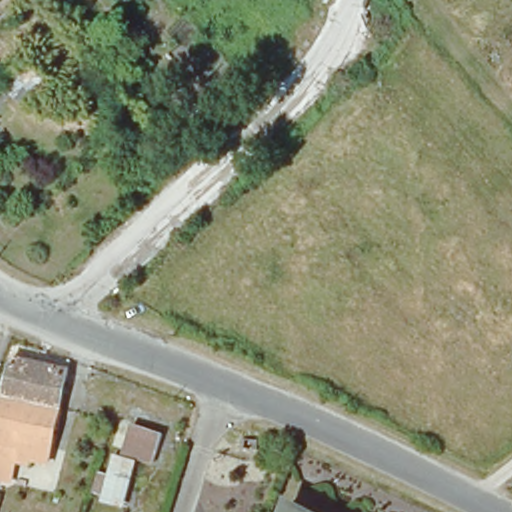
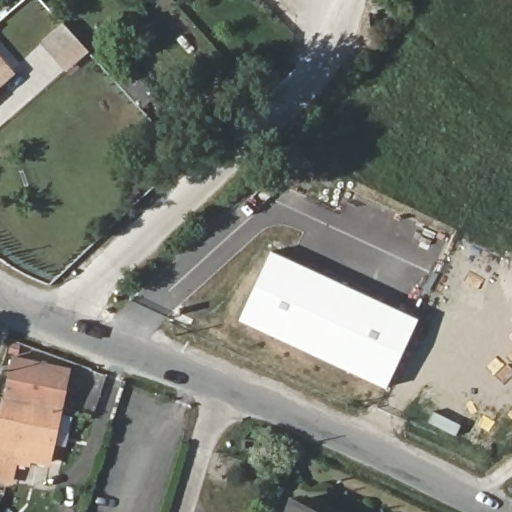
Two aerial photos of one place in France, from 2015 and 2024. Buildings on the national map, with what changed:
new [(66,72),(40,44),(63,23),(89,51),(66,72)]
new [(0,81),(0,55),(13,70),(0,81)]
new [(238,319),(271,250),(418,319),(385,388),(238,319)]
unchanged [(16,464),(7,496),(0,493),(0,414),(17,353),(76,369),(47,473),(16,464)]
demolished [(131,434),(159,444),(152,469),(122,459),(131,434)]
demolished [(97,488),(106,491),(113,471),(132,477),(120,512),(99,512),(101,507),(91,504),(97,488)]
unchanged [(301,502),(319,512),(297,512),(301,502)]

